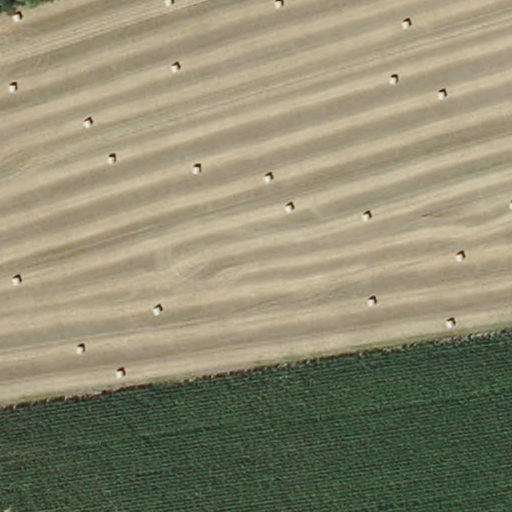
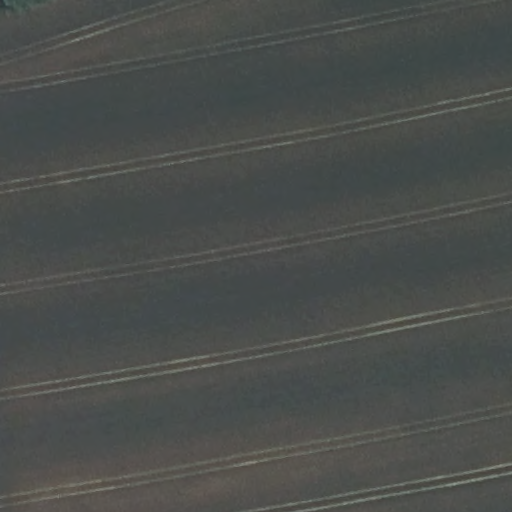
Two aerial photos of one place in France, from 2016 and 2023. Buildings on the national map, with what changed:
[]

